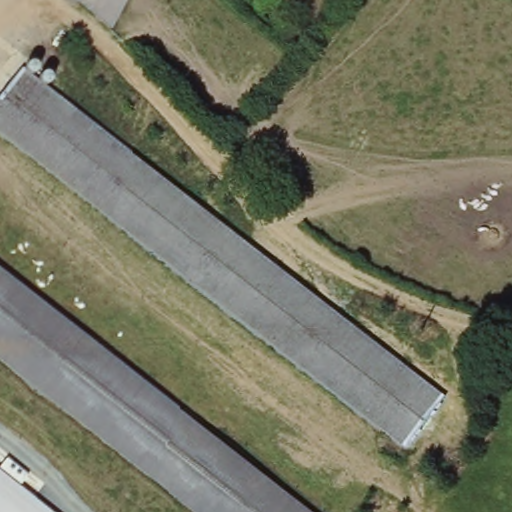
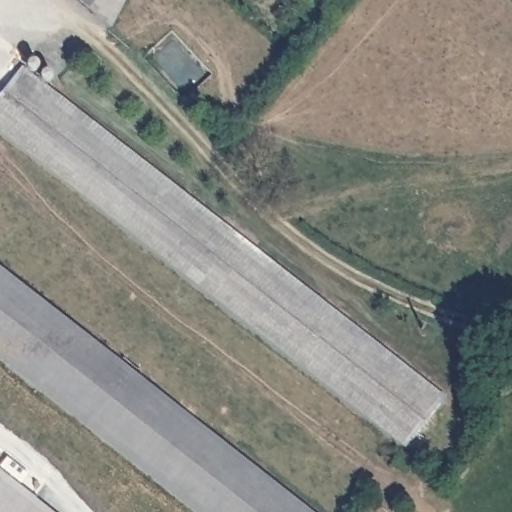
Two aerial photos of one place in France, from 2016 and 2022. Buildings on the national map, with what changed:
unchanged [(111,29),(75,0),(127,0),(111,29)]
unchanged [(19,70),(445,402),(408,446),(0,132),(0,95),(19,70)]
unchanged [(119,365),(140,376),(139,380),(309,512),(209,512),(111,435),(0,348),(0,274),(119,365)]
unchanged [(0,512),(0,469),(54,512),(0,512)]

